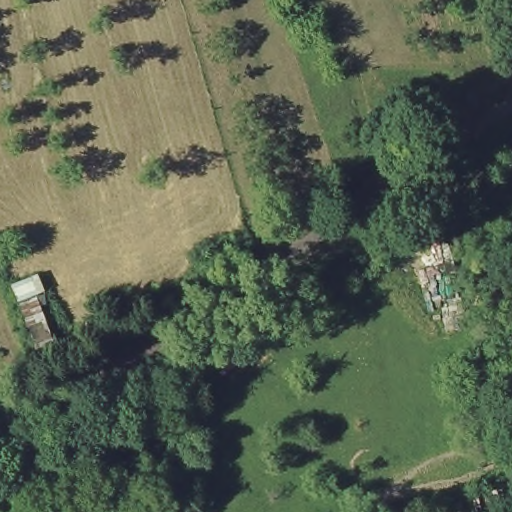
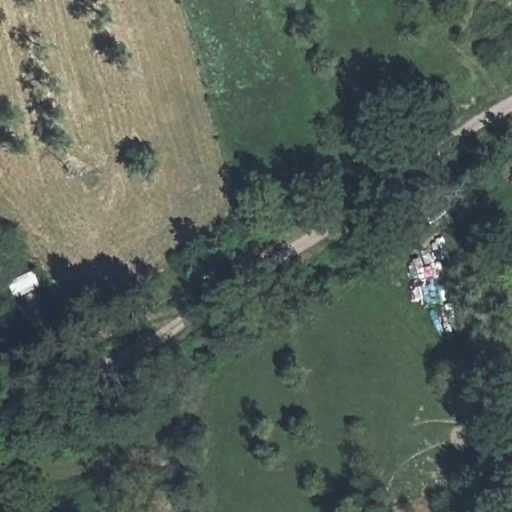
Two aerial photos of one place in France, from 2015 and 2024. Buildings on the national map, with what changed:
unchanged [(36,269),(46,292),(35,300),(52,344),(32,352),(5,285),(36,269)]

